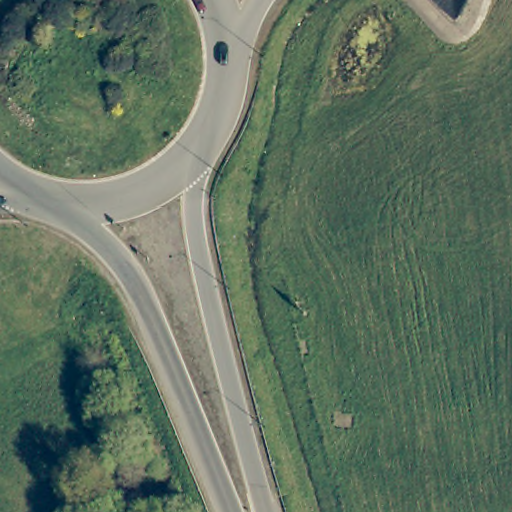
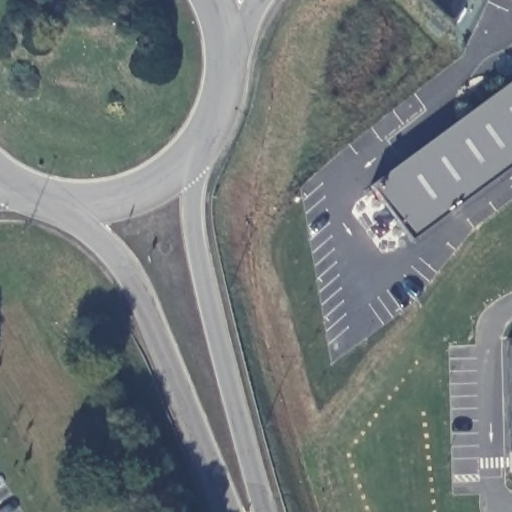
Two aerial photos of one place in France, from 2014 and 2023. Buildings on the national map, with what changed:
new [(372,186),(512,82),(512,168),(411,241),(372,186)]
new [(512,340),(512,451),(510,450),(508,340),(512,340)]

